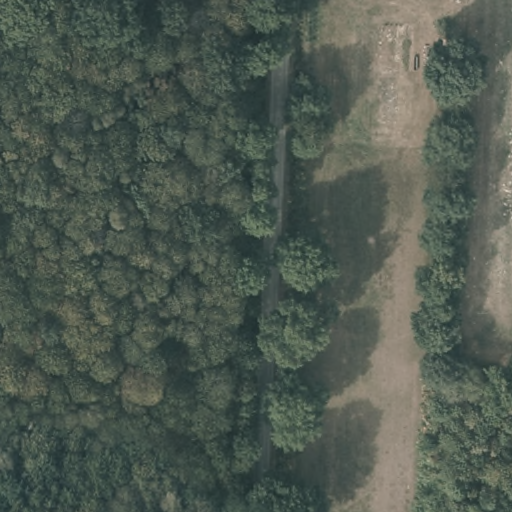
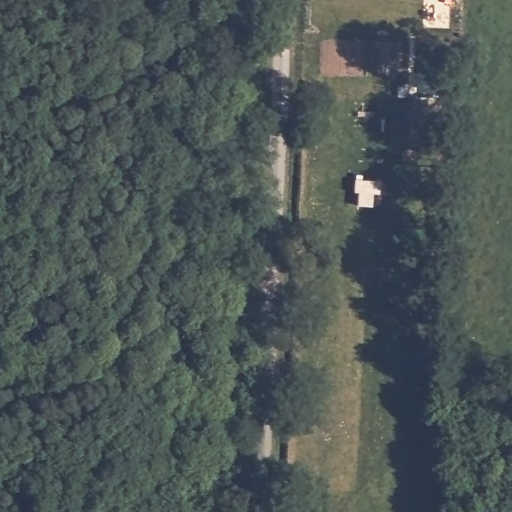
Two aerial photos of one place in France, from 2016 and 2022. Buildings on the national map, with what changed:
[]

